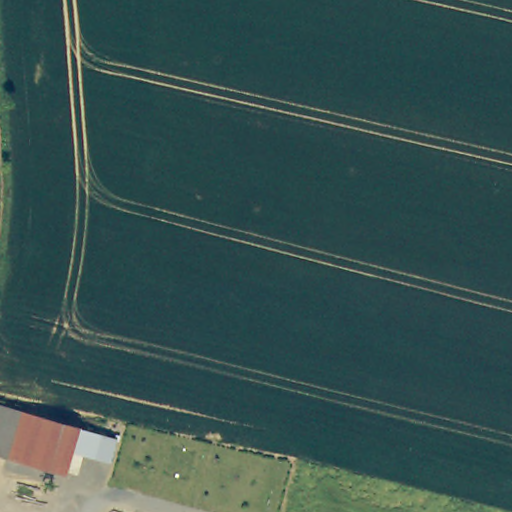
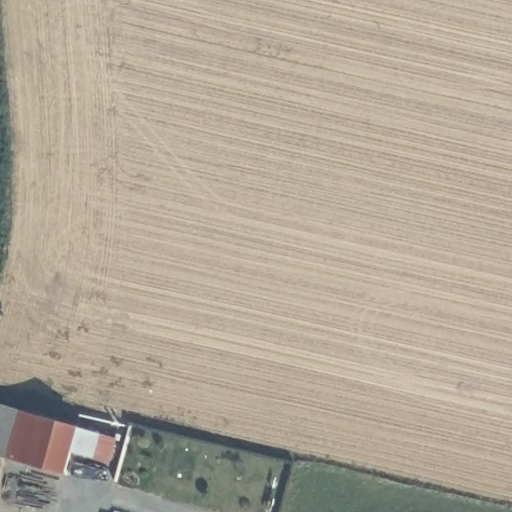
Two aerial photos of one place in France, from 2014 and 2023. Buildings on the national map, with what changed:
unchanged [(70,447),(62,471),(0,451),(0,399),(77,424),(116,436),(108,459),(70,447)]

